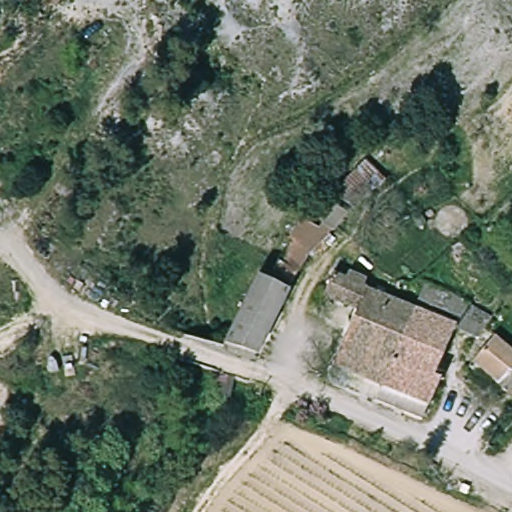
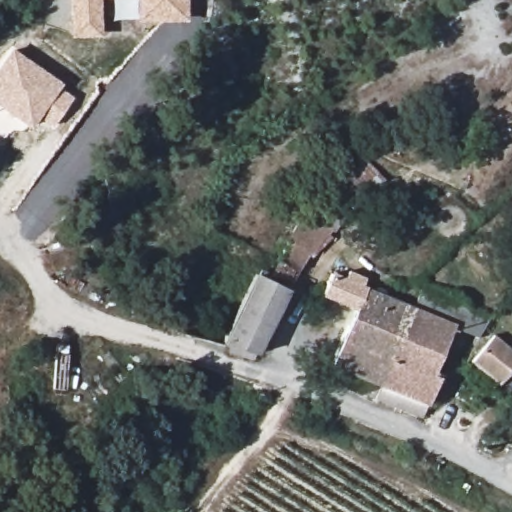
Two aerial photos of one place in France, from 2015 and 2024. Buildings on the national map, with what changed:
new [(71,37),(70,0),(101,0),(102,36),(71,37)]
new [(138,21),(137,0),(187,0),(188,21),(138,21)]
new [(60,88),(72,96),(51,125),(39,116),(30,129),(0,107),(0,66),(13,49),(62,83),(60,88)]
unchanged [(365,163),(385,187),(355,212),(332,189),(365,163)]
unchanged [(292,231),(289,218),(309,205),(312,211),(321,224),(332,235),(313,255),(308,251),(294,282),(273,271),(278,254),(292,231)]
unchanged [(357,309),(323,294),(332,270),(400,301),(412,306),(378,381),(332,361),(357,309)]
unchanged [(239,312),(247,293),(255,274),(269,282),(288,292),(281,310),(257,357),(254,362),(230,355),(220,350),(222,347),(239,312)]
unchanged [(429,285),(490,311),(480,333),(462,326),(418,308),(429,285)]
unchanged [(412,306),(418,308),(462,326),(434,380),(441,383),(425,415),(372,393),(378,381),(412,306)]
unchanged [(497,344),(505,353),(509,351),(512,355),(512,381),(505,387),(480,359),(497,344)]
unchanged [(239,385),(232,405),(206,399),(214,377),(239,385)]

